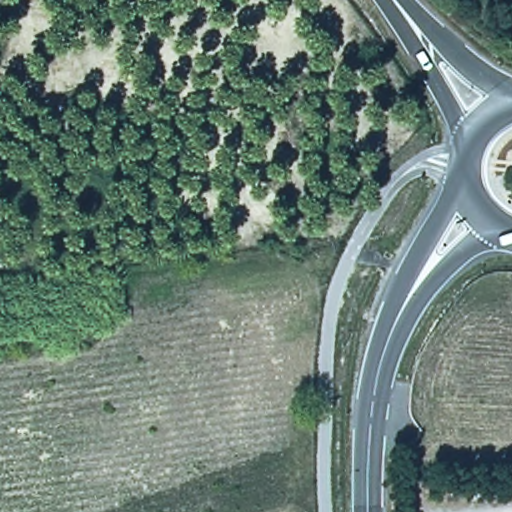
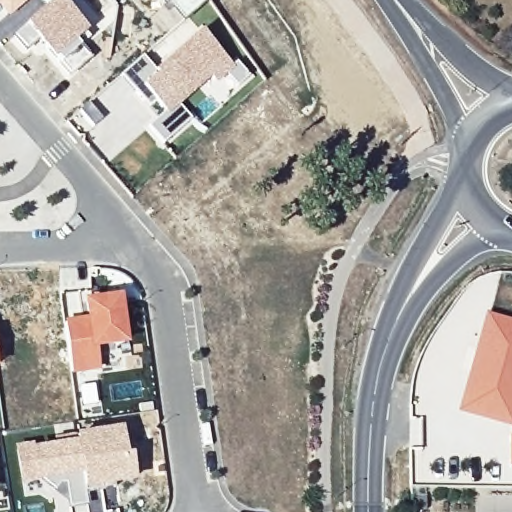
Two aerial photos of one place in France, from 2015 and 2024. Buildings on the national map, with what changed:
new [(10,17),(0,7),(0,0),(28,0),(10,17)]
new [(53,0),(59,0),(87,31),(76,41),(90,58),(68,78),(23,29),(53,0)]
new [(183,21),(167,5),(163,8),(155,0),(208,0),(183,21)]
new [(160,148),(145,130),(110,161),(85,133),(108,112),(95,97),(120,73),(142,54),(155,69),(200,30),(235,69),(216,84),(211,78),(180,106),(193,121),(160,148)]
new [(82,316),(82,299),(120,294),(128,344),(97,349),(100,369),(70,374),(63,319),(82,316)]
new [(512,321),(512,426),(456,411),(485,313),(512,321)]
new [(122,426),(135,482),(83,493),(80,477),(73,438),(73,435),(122,426)]
new [(512,434),(512,466),(508,466),(509,434),(512,434)]
new [(34,443),(35,445),(73,438),(80,477),(83,493),(86,505),(68,508),(63,481),(21,484),(15,445),(34,443)]
new [(44,512),(25,512),(25,508),(43,505),(44,512)]

